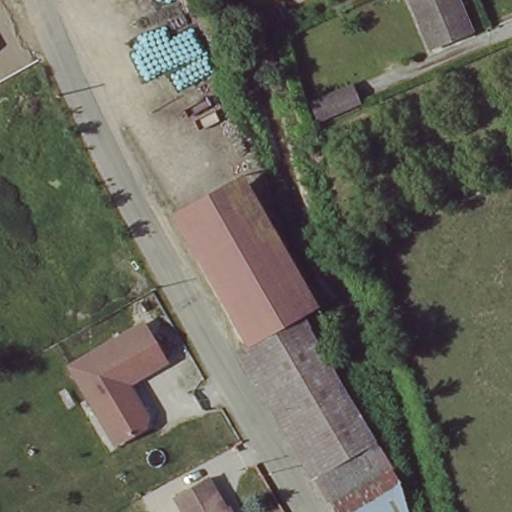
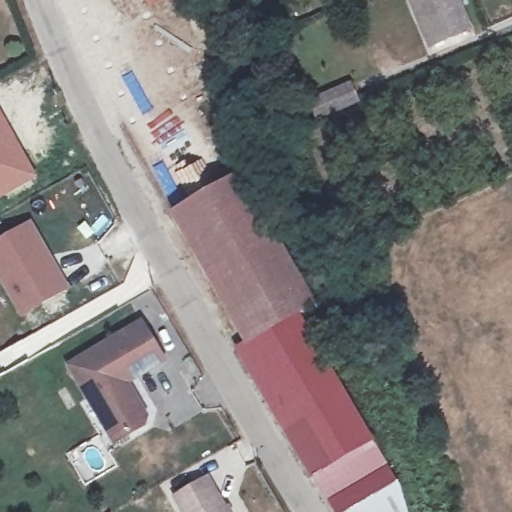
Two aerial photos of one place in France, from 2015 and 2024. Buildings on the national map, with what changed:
unchanged [(432,47),(412,0),(457,0),(470,30),(432,47)]
unchanged [(349,85),(357,101),(321,118),(313,103),(349,85)]
new [(35,176),(0,198),(0,114),(35,176)]
unchanged [(180,216),(247,176),(273,223),(206,263),(180,216)]
new [(70,287),(23,316),(0,278),(0,240),(33,221),(70,287)]
unchanged [(273,223),(318,304),(303,313),(252,344),(206,263),(273,223)]
unchanged [(303,313),(342,384),(292,414),(252,344),(303,313)]
unchanged [(104,425),(69,368),(141,324),(163,361),(136,377),(132,371),(122,378),(146,417),(143,427),(128,436),(115,444),(104,425)]
unchanged [(292,414),(342,384),(377,445),(327,475),(292,414)]
unchanged [(327,475),(377,445),(403,493),(407,504),(409,512),(348,512),(327,475)]
unchanged [(203,479),(222,512),(180,512),(172,498),(203,479)]

